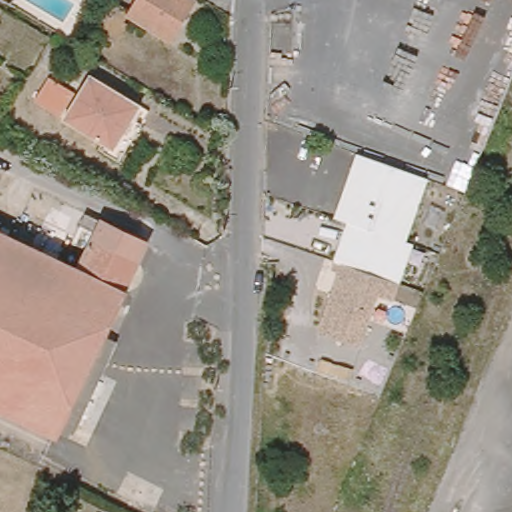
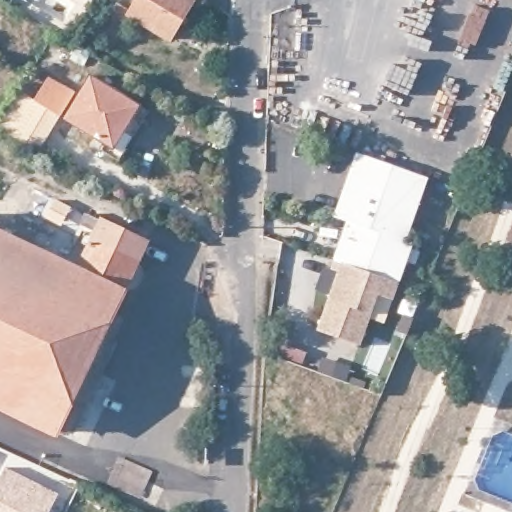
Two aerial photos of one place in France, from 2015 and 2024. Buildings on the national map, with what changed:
unchanged [(92,32),(110,2),(118,9),(125,12),(133,0),(187,0),(165,40),(125,16),(110,42),(92,32)]
unchanged [(70,93),(56,116),(30,100),(44,77),(70,93)]
unchanged [(97,151),(101,145),(60,119),(87,78),(135,109),(127,122),(137,129),(117,160),(114,162),(97,151)]
unchanged [(434,183),(410,245),(417,247),(402,283),(338,261),(353,222),(340,217),(365,155),(434,183)]
unchanged [(95,250),(89,247),(95,234),(87,229),(92,217),(151,246),(135,281),(117,318),(105,343),(72,412),(59,437),(0,409),(0,235),(83,276),(95,250)]
unchanged [(394,303),(380,297),(360,347),(318,330),(333,293),(321,289),(333,260),(337,261),(402,283),(394,303)]
unchanged [(117,318),(131,325),(120,348),(85,418),(72,412),(105,343),(117,318)]
new [(119,457),(152,471),(141,497),(107,483),(119,457)]
new [(59,492),(49,512),(0,512),(0,471),(3,465),(59,492)]

